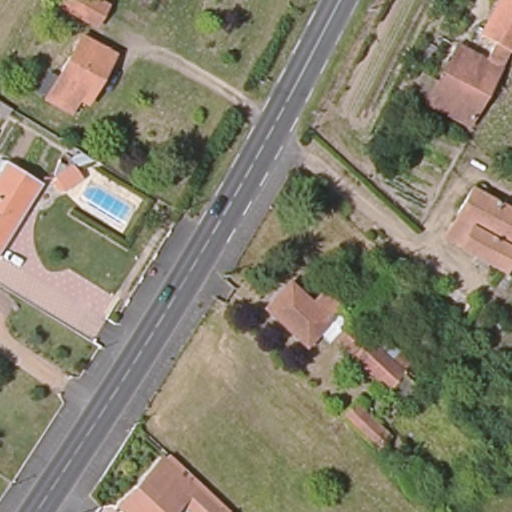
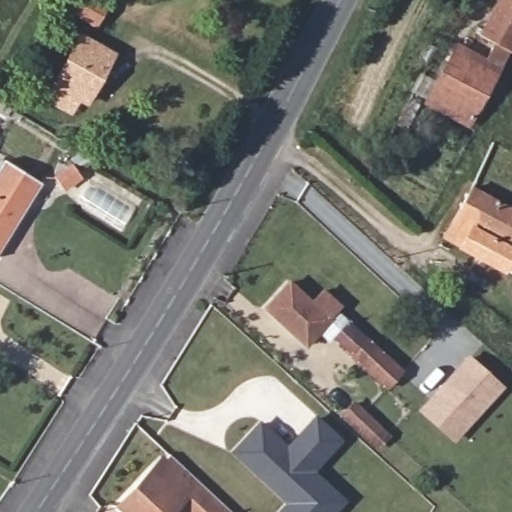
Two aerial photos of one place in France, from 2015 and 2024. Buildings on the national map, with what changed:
unchanged [(111,8),(99,26),(60,4),(63,0),(96,0),(111,8)]
unchanged [(431,86),(452,42),(487,57),(495,39),(479,33),(497,0),(512,0),(512,41),(508,48),(476,109),(431,86)]
unchanged [(52,94),(85,33),(116,52),(91,99),(85,96),(76,108),(52,94)]
unchanged [(508,48),(512,41),(512,50),(508,48)]
unchanged [(45,181),(0,249),(0,180),(12,162),(45,181)]
unchanged [(460,247),(469,228),(453,220),(469,186),(512,208),(512,262),(508,270),(460,247)]
unchanged [(383,389),(318,331),(307,342),(266,306),(287,284),(308,302),(321,290),(339,306),(337,311),(401,370),(383,389)]
new [(469,354),(505,387),(455,443),(418,410),(469,354)]
unchanged [(378,444),(345,415),(355,403),(389,433),(378,444)]
new [(228,453),(260,419),(288,445),(315,414),(342,438),(315,471),(345,500),(335,512),(275,512),(283,502),(228,453)]
unchanged [(172,512),(133,512),(121,501),(155,464),(159,467),(167,457),(225,512),(195,512),(182,500),(172,512)]

